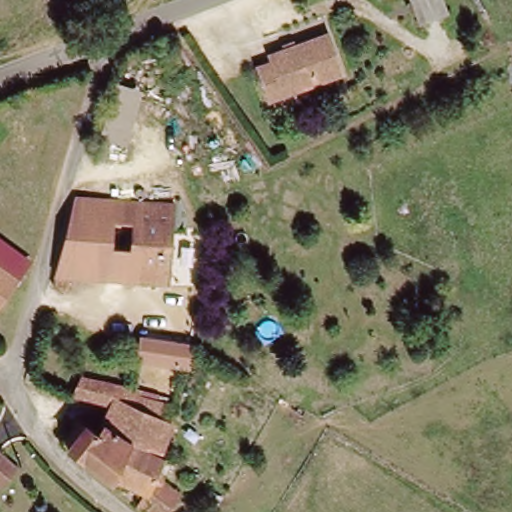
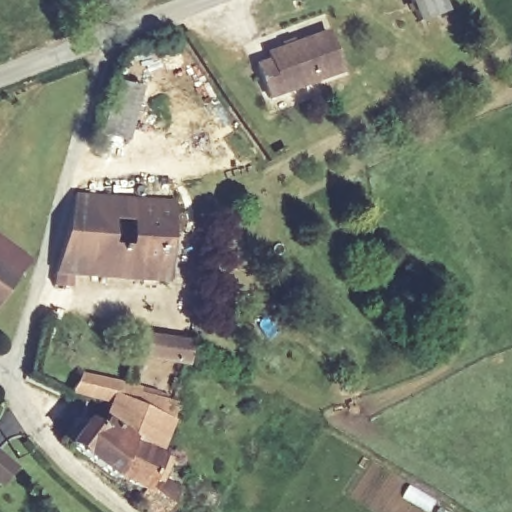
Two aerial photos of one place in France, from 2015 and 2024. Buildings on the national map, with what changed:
unchanged [(449,9),(420,20),(413,0),(445,0),(449,9)]
unchanged [(346,71),(274,99),(262,66),(276,60),(274,54),(332,32),(346,71)]
unchanged [(145,87),(128,145),(96,139),(114,79),(145,87)]
unchanged [(178,209),(171,283),(69,277),(64,289),(48,286),(76,203),(178,209)]
unchanged [(19,276),(0,264),(0,241),(29,260),(19,276)]
unchanged [(0,308),(0,264),(19,276),(0,308)]
unchanged [(189,363),(140,356),(144,336),(194,344),(189,363)]
unchanged [(85,377),(126,389),(126,396),(177,409),(160,459),(132,445),(115,478),(110,483),(70,449),(81,430),(100,437),(110,409),(71,396),(85,377)]
unchanged [(132,445),(160,459),(171,466),(157,486),(172,500),(161,512),(142,512),(110,483),(115,478),(132,445)]
unchanged [(7,479),(0,473),(0,448),(1,447),(20,465),(7,479)]

